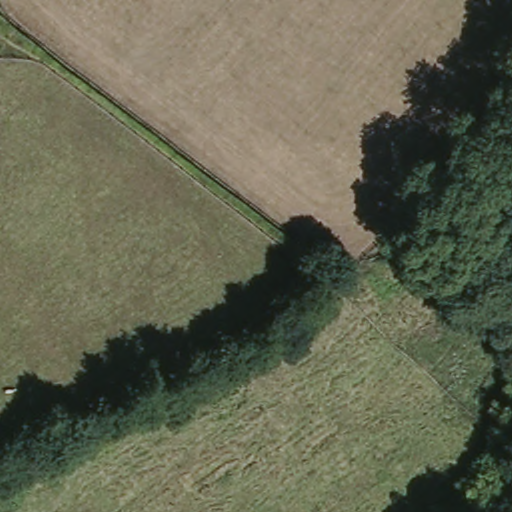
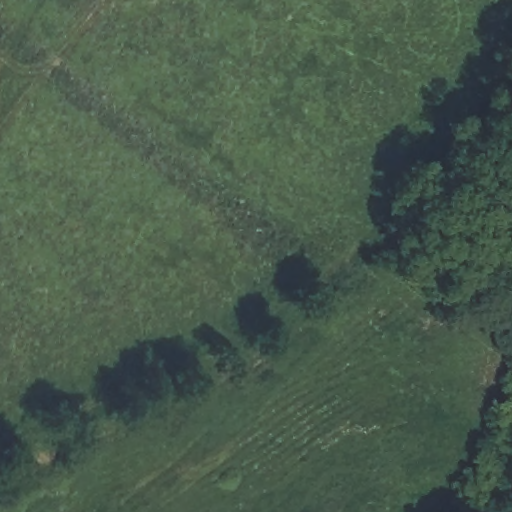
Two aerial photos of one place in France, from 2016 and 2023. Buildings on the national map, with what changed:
[]

